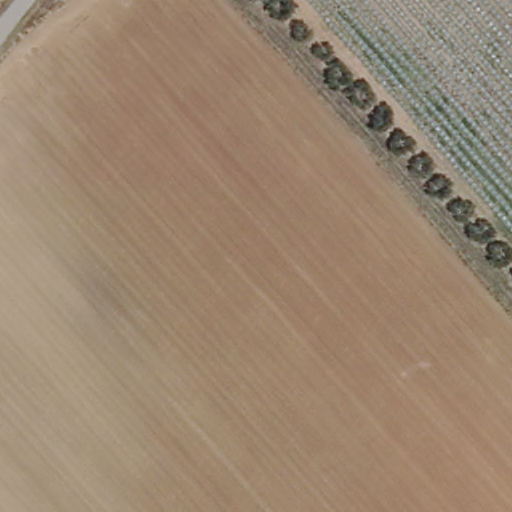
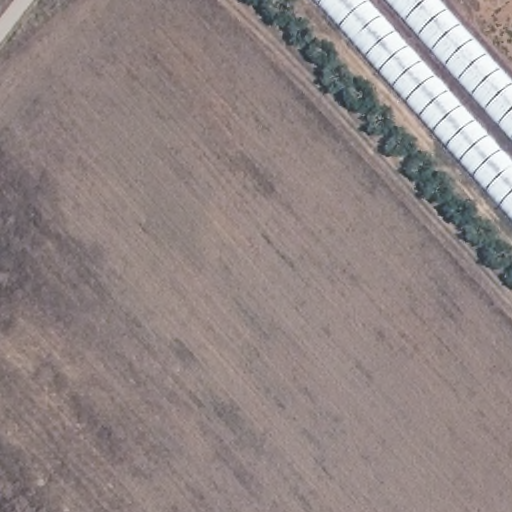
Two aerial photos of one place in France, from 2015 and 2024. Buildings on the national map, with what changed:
new [(512,84),(512,220),(314,0),(438,0),(512,84)]

